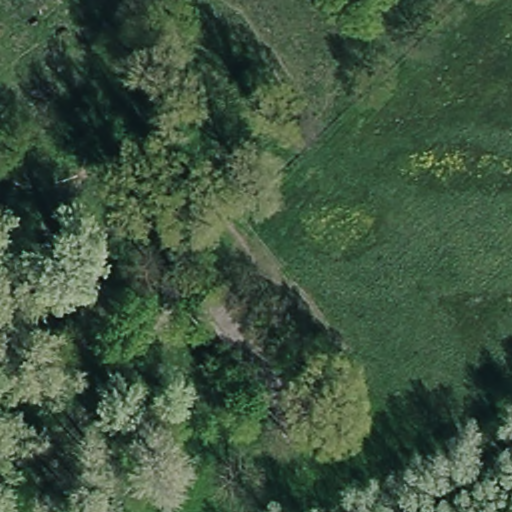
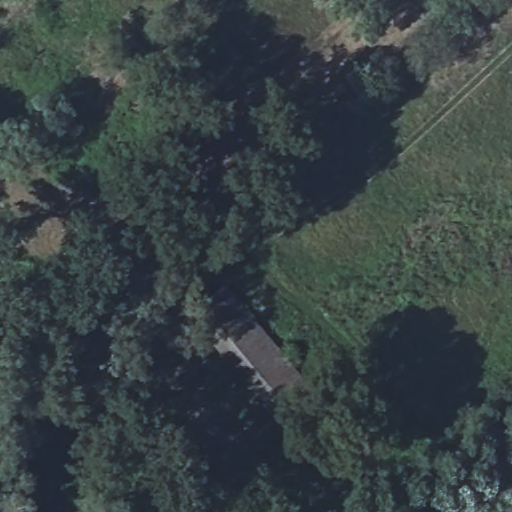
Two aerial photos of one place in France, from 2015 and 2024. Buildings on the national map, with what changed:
unchanged [(197,325),(227,294),(295,374),(262,404),(197,325)]

